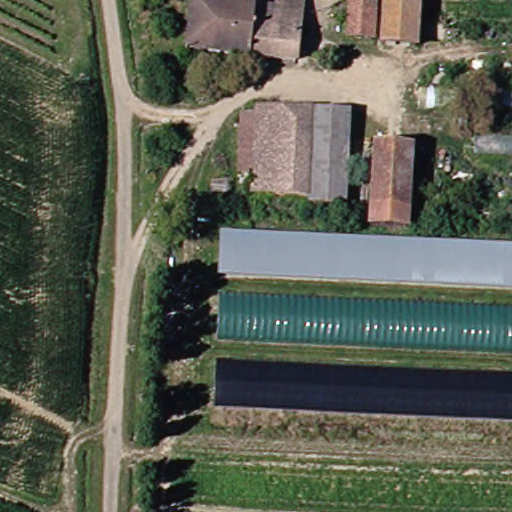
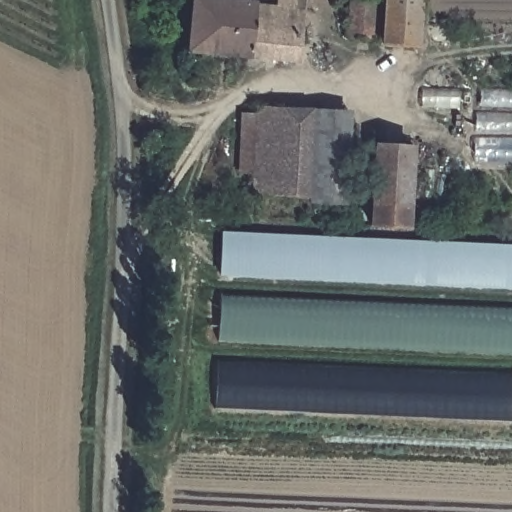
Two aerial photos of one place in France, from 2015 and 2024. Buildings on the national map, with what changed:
unchanged [(276,0),(305,0),(298,61),(192,51),(197,0),(211,0),(276,7),(276,0)]
unchanged [(391,46),(392,0),(423,0),(421,46),(391,46)]
unchanged [(261,172),(248,171),(250,120),(263,120),(264,106),(317,110),(314,197),(261,196),(261,172)]
unchanged [(317,110),(356,112),(351,203),(314,202),(314,197),(317,110)]
unchanged [(414,146),(411,224),(380,223),(382,145),(414,146)]
unchanged [(224,278),(226,231),(512,244),(512,289),(224,278)]
unchanged [(224,339),(225,294),(512,308),(512,352),(224,339)]
unchanged [(218,368),(512,377),(512,422),(217,409),(218,368)]

